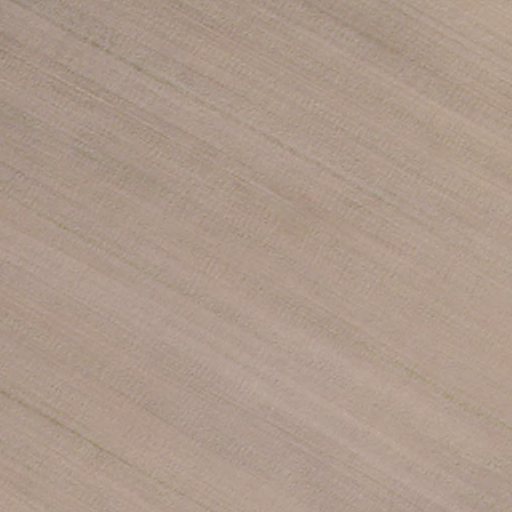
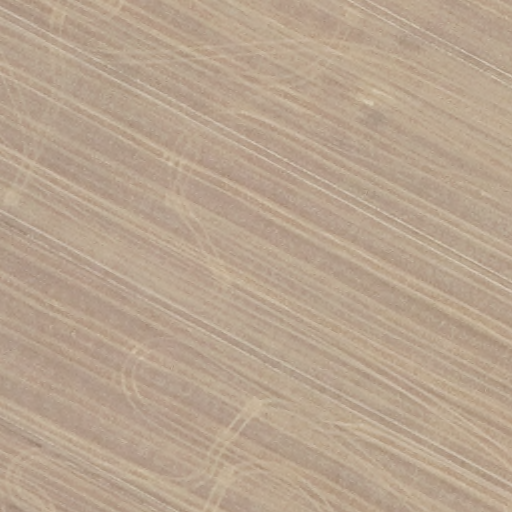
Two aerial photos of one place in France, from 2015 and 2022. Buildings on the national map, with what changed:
[]

